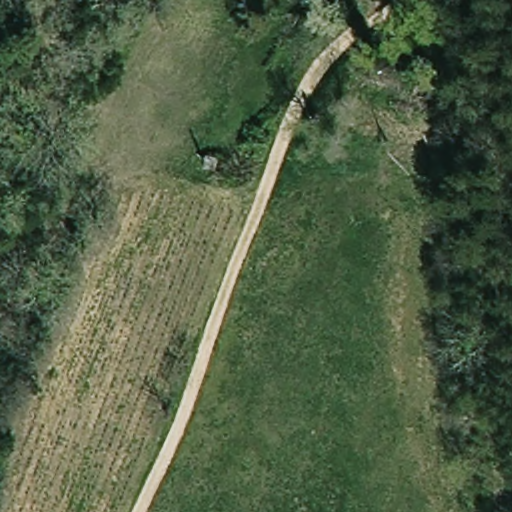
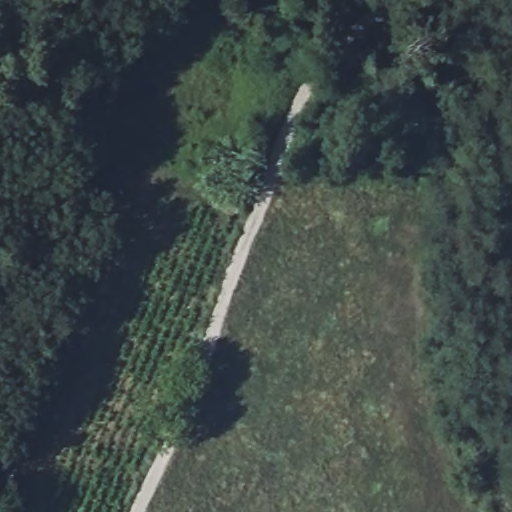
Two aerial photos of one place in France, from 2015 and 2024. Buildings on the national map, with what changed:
[]

